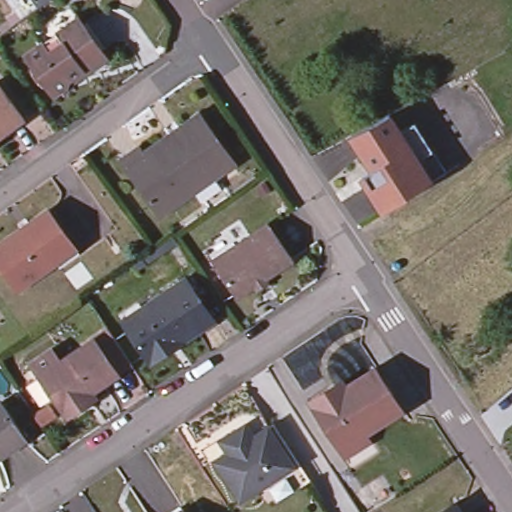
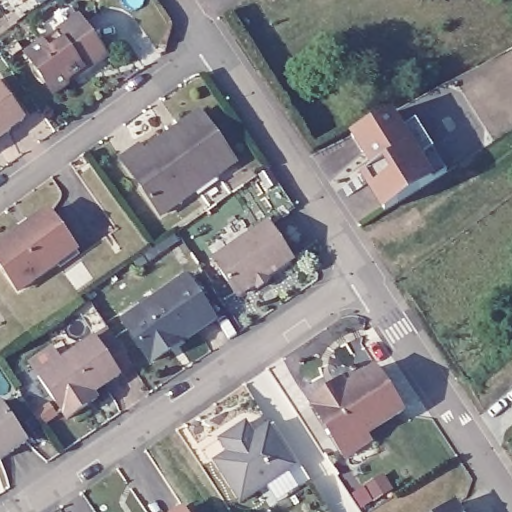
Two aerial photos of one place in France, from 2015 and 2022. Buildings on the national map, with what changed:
unchanged [(34,0),(51,0),(40,8),(34,0)]
unchanged [(48,89),(20,48),(72,10),(101,50),(82,64),(63,78),(48,89)]
unchanged [(0,132),(0,85),(23,116),(0,132)]
unchanged [(234,156),(160,208),(124,158),(121,153),(138,140),(142,145),(169,126),(178,120),(198,106),(234,156)]
unchanged [(400,135),(415,125),(420,133),(436,156),(447,174),(385,214),(370,191),(362,179),(374,172),(367,161),(352,138),(390,118),(400,135)]
unchanged [(70,246),(12,286),(0,268),(0,237),(17,226),(24,221),(42,208),(70,246)]
unchanged [(264,220),(290,257),(262,276),(259,271),(252,277),(251,284),(238,292),(232,292),(208,258),(264,220)]
unchanged [(210,317),(149,359),(123,324),(120,319),(138,307),(181,276),(210,317)]
unchanged [(87,404),(67,418),(37,374),(39,372),(31,360),(50,346),(59,359),(93,335),(118,371),(91,389),(97,397),(87,404)]
unchanged [(348,459),(344,453),(343,454),(311,404),(330,392),(345,383),(348,389),(377,371),(404,414),(366,439),(370,445),(348,459)]
unchanged [(0,452),(0,406),(22,437),(0,452)]
unchanged [(276,490),(262,500),(250,482),(232,494),(207,455),(220,446),(212,433),(227,423),(231,421),(237,417),(245,429),(260,420),(265,416),(290,457),(301,474),(276,490)]
unchanged [(455,503),(461,512),(441,512),(455,503)]
unchanged [(188,512),(170,512),(183,504),(188,512)]

